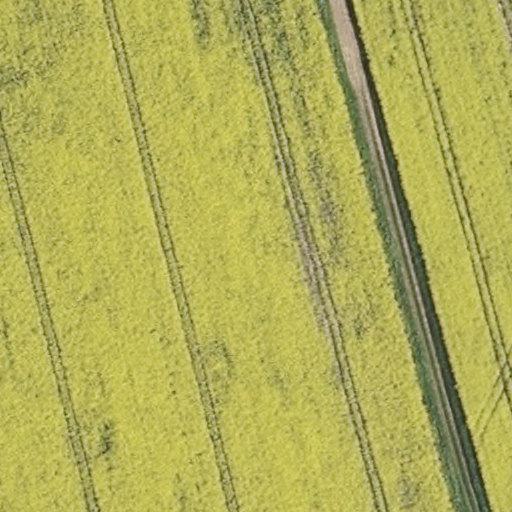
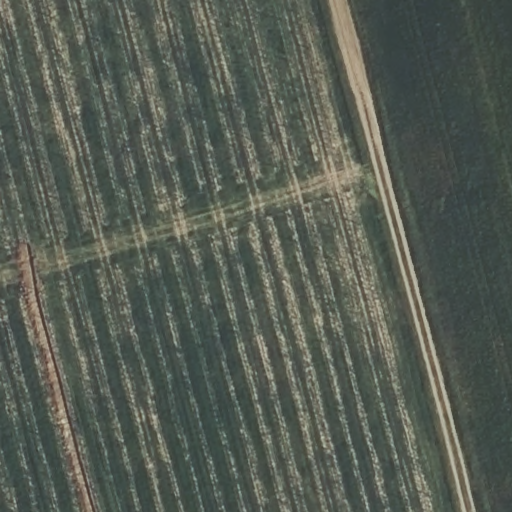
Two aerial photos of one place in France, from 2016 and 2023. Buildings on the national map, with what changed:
[]

